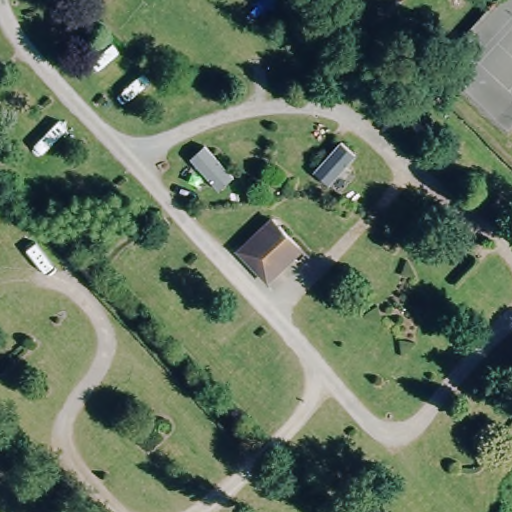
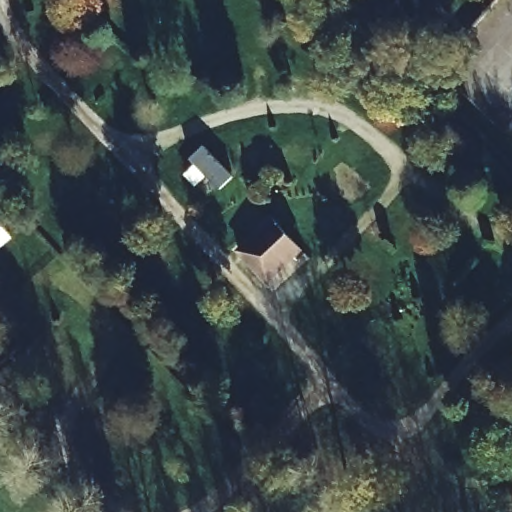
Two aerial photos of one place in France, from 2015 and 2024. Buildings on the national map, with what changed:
unchanged [(239,244),(269,223),(293,250),(266,275),(239,244)]

